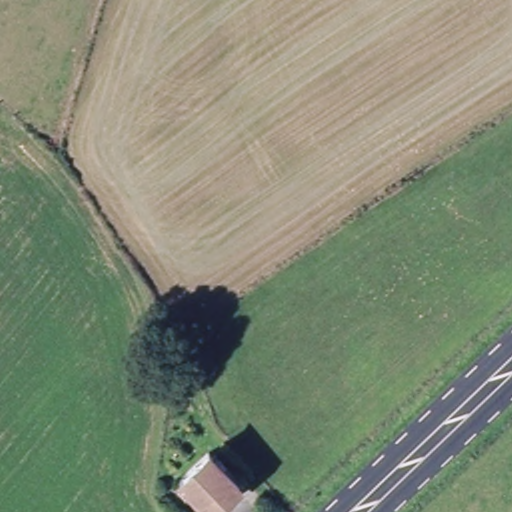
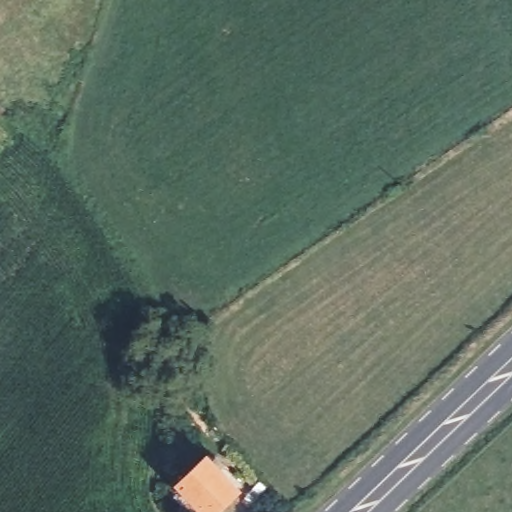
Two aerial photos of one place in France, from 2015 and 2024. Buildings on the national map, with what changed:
unchanged [(225,512),(207,512),(183,486),(214,458),(246,493),(225,512)]

